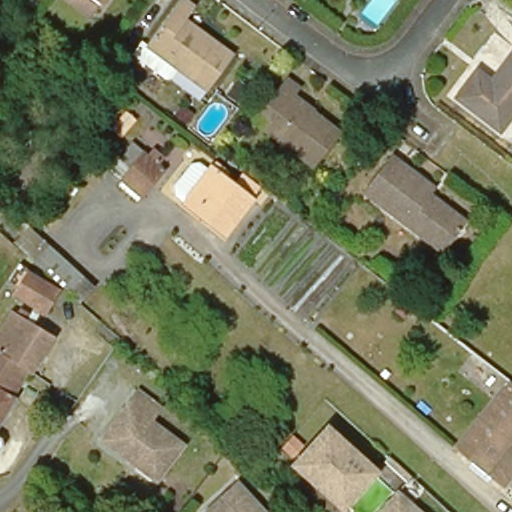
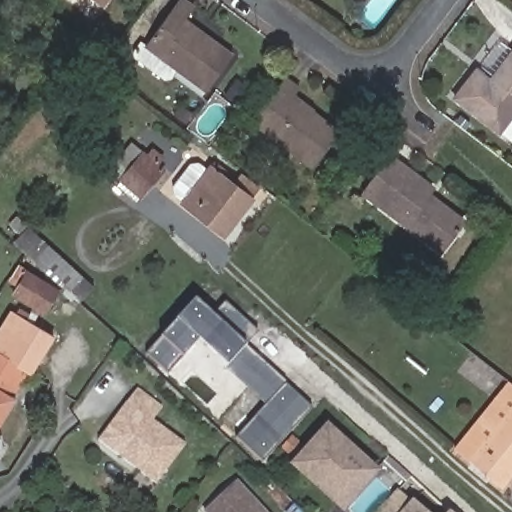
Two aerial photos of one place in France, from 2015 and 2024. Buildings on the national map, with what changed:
unchanged [(30,0),(45,0),(40,8),(30,0)]
unchanged [(99,0),(105,0),(102,3),(99,0)]
unchanged [(180,0),(194,0),(200,5),(190,18),(236,53),(210,88),(147,42),(180,0)]
unchanged [(500,132),(456,98),(477,70),(491,80),(495,75),(512,51),(512,117),(500,132)]
unchanged [(288,74),(302,84),(296,93),(343,129),(317,163),(255,118),(288,74)]
unchanged [(119,181),(127,170),(115,160),(130,143),(161,169),(138,197),(133,193),(119,181)]
unchanged [(430,242),(367,194),(395,158),(435,188),(430,195),(466,222),(454,239),(444,252),(430,242)]
unchanged [(224,235),(184,203),(215,163),(230,174),(226,180),(234,185),(241,175),(260,190),(224,235)]
unchanged [(96,285),(80,304),(14,243),(31,227),(96,285)]
unchanged [(32,283),(63,303),(50,323),(19,305),(32,283)]
new [(266,405),(225,369),(227,365),(198,340),(183,356),(169,373),(147,354),(161,337),(176,321),(176,320),(195,299),(211,315),(225,302),(257,332),(245,345),(286,383),(285,384),(312,408),(263,462),(236,438),(266,405)]
unchanged [(52,340),(30,375),(25,372),(9,395),(15,399),(0,420),(0,335),(14,315),(52,340)]
unchanged [(184,440),(153,478),(97,432),(138,382),(162,402),(152,414),(184,440)]
unchanged [(503,495),(455,453),(508,384),(512,387),(512,484),(503,495)]
unchanged [(293,466),(327,429),(375,472),(376,472),(363,486),(343,510),(318,488),(293,466)]
unchanged [(0,446),(0,440),(2,442),(0,446)]
unchanged [(255,512),(217,512),(237,493),(255,512)]
unchanged [(412,507),(414,505),(422,512),(380,512),(397,494),(412,507)]

